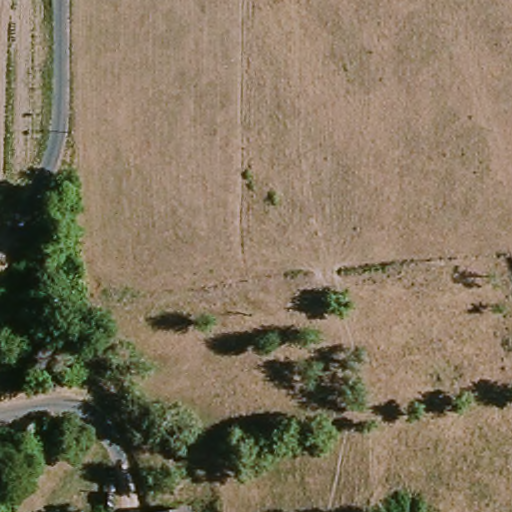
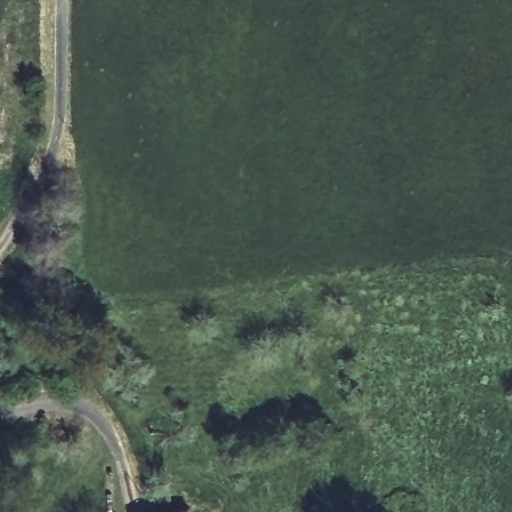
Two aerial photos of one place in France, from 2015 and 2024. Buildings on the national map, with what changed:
unchanged [(192,505),(193,512),(160,512),(192,505)]

